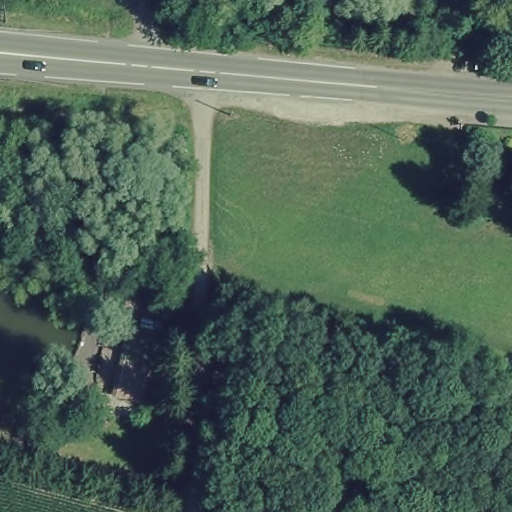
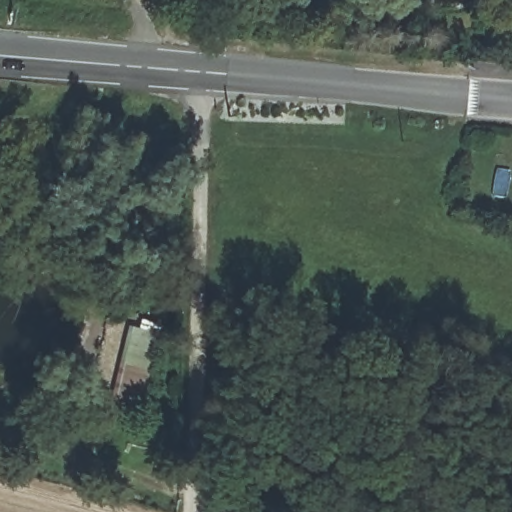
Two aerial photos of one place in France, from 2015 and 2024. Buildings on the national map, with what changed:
unchanged [(118,331),(153,339),(138,406),(102,398),(118,331)]

